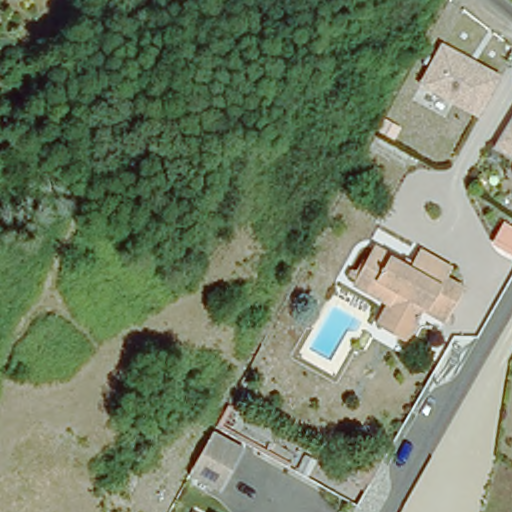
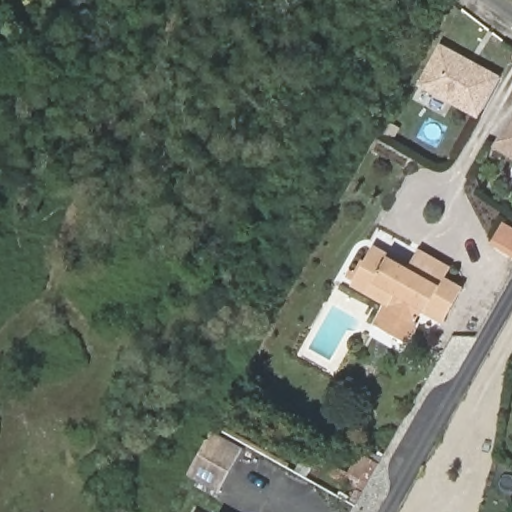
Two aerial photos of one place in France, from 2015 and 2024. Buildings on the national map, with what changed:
unchanged [(478,118),(418,85),(440,43),(501,75),(478,118)]
unchanged [(512,116),(512,158),(492,147),(512,116)]
unchanged [(419,304),(399,338),(371,320),(381,298),(347,277),(369,240),(401,260),(414,241),(453,260),(444,275),(461,284),(440,317),(419,304)]
unchanged [(218,490),(192,476),(194,472),(215,433),(242,447),(218,490)]
unchanged [(377,476),(368,492),(363,500),(346,489),(359,465),(377,476)]

